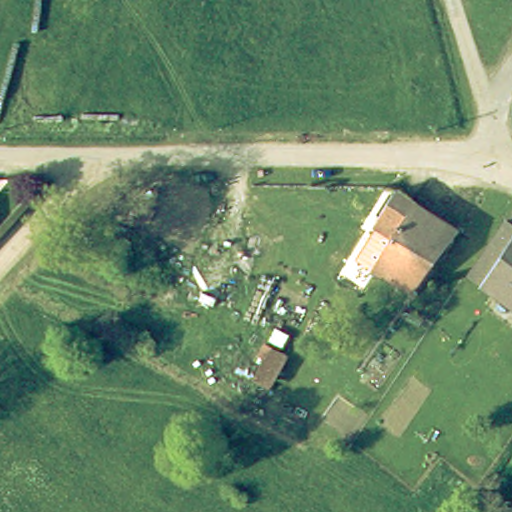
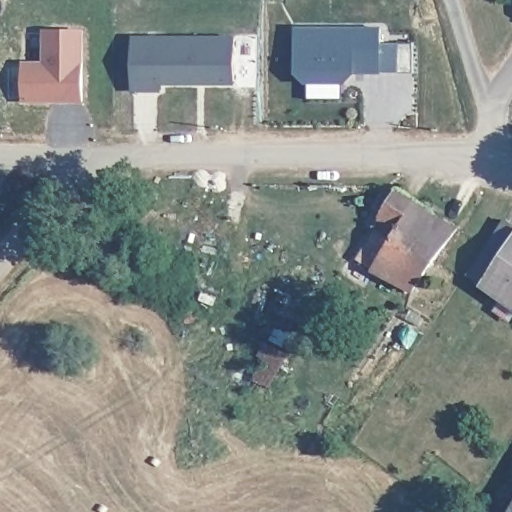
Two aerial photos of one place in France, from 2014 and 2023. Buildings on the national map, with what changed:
new [(24,99),(25,61),(45,61),(46,28),(83,29),(82,99),(65,99),(55,99),(24,99)]
new [(297,30),(382,31),(382,76),(356,75),(345,86),(307,85),(297,75),(297,30)]
new [(135,37),(237,40),(236,84),(162,82),(162,89),(133,89),(135,37)]
unchanged [(414,290),(375,268),(393,237),(374,226),(395,190),(413,201),(453,226),(414,290)]
unchanged [(502,226),(512,233),(512,312),(477,290),(465,282),(502,226)]
unchanged [(288,356),(267,395),(246,383),(265,347),(288,356)]
unchanged [(512,497),(512,512),(502,512),(512,497)]

